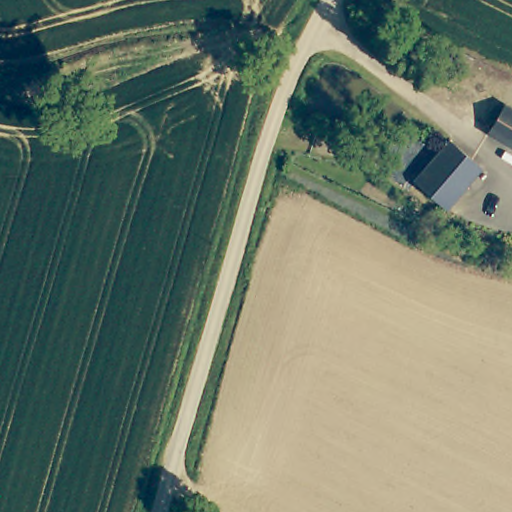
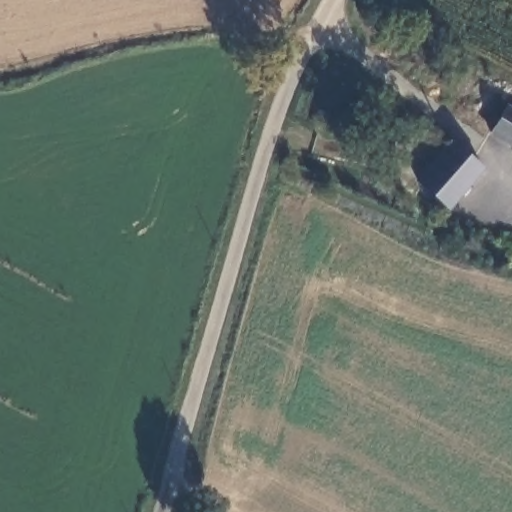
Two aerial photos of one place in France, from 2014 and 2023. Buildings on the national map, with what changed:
unchanged [(512,105),(512,143),(491,130),(507,102),(512,105)]
unchanged [(480,163),(447,203),(417,177),(450,137),(480,163)]

